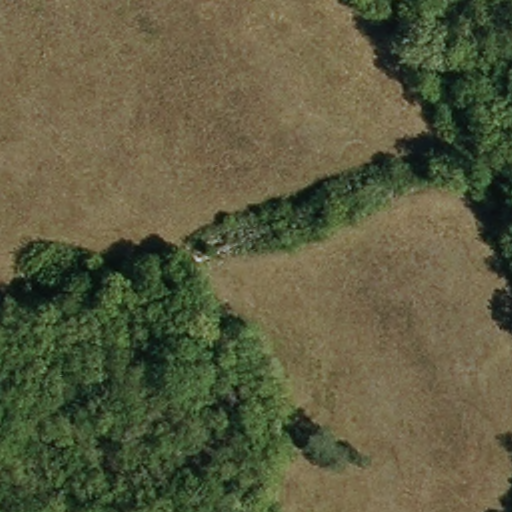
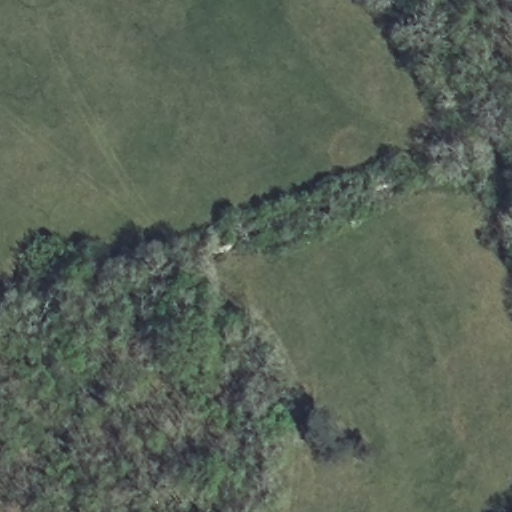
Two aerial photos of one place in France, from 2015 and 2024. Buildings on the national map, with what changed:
[]

